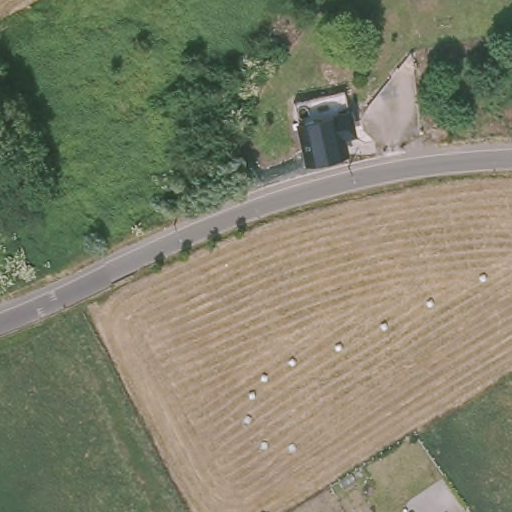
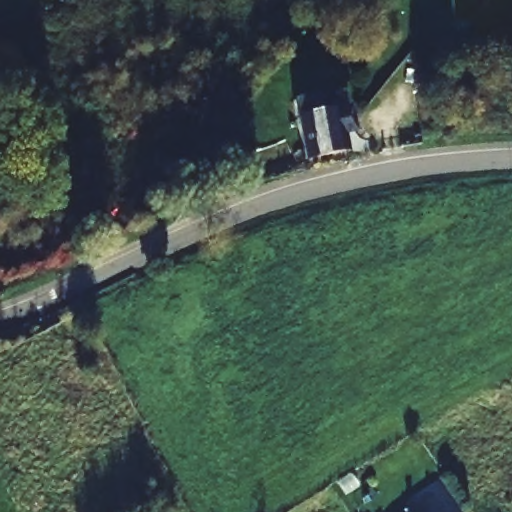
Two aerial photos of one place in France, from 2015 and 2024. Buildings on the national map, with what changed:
unchanged [(328,92),(326,76),(345,73),(347,89),(328,92)]
unchanged [(341,114),(345,113),(349,135),(338,137),(341,155),(305,162),(295,123),(341,114)]

